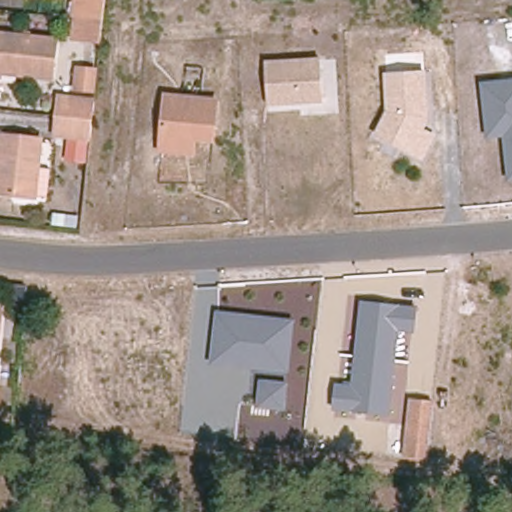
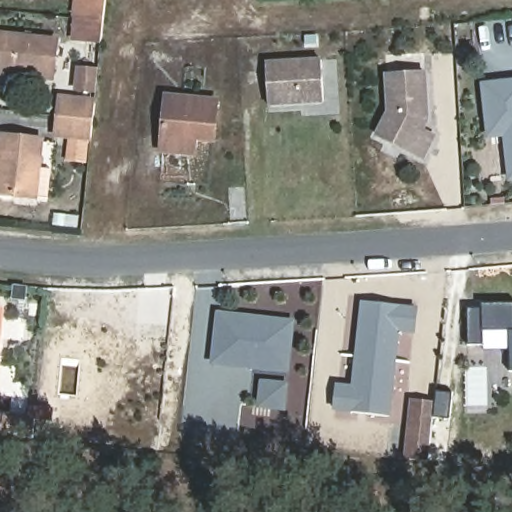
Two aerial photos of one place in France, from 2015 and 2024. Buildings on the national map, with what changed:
unchanged [(83,14),(84,0),(99,0),(98,15),(97,22),(95,36),(67,34),(69,12),(83,14)]
unchanged [(52,76),(0,70),(0,34),(56,41),(52,76)]
unchanged [(270,106),(269,65),(324,62),(326,104),(313,104),(303,105),(270,106)]
unchanged [(93,71),(91,90),(73,88),(74,69),(93,71)]
unchanged [(429,120),(424,129),(437,135),(422,162),(374,136),(387,111),(384,70),(427,69),(429,120)]
unchanged [(508,181),(502,137),(486,140),(480,81),(512,79),(512,181),(508,181)]
unchanged [(57,116),(59,98),(94,101),(92,120),(90,138),(55,134),(57,116)]
unchanged [(160,106),(211,102),(214,142),(196,143),(197,158),(163,160),(163,145),(160,106)]
unchanged [(34,169),(46,170),(43,199),(0,194),(0,135),(36,140),(34,169)]
unchanged [(412,330),(398,329),(387,415),(337,410),(339,385),(354,386),(365,301),(415,307),(412,330)]
new [(469,309),(484,308),(483,305),(512,304),(512,372),(511,331),(483,330),(484,345),(469,345),(469,309)]
unchanged [(0,319),(0,308),(1,308),(0,319)]
unchanged [(292,373),(210,365),(217,310),(298,317),(292,373)]
unchanged [(287,411),(257,409),(259,380),(289,382),(287,411)]
unchanged [(413,416),(434,419),(430,462),(408,460),(413,416)]

